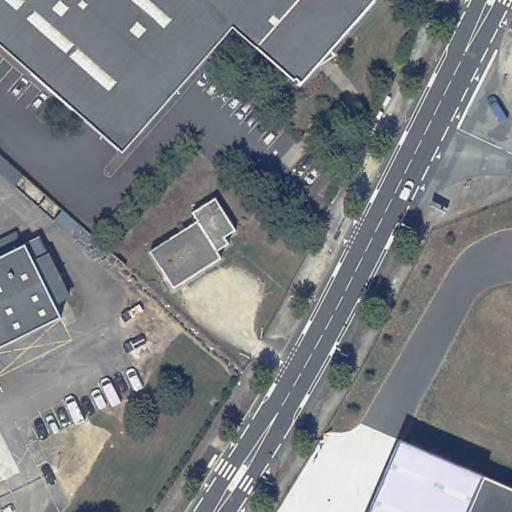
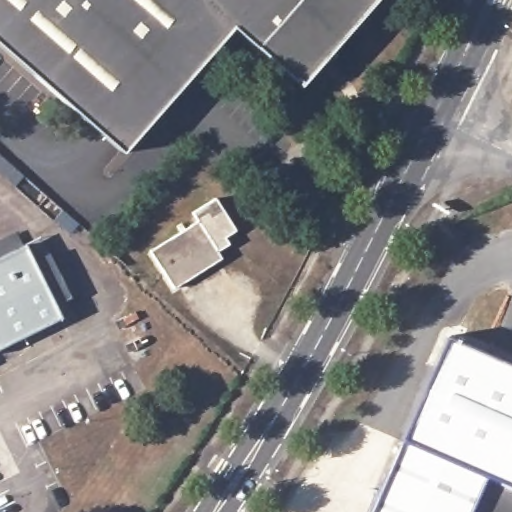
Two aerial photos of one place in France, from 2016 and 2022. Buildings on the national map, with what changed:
unchanged [(301,84),(303,81),(299,79),(298,81),(236,27),(126,153),(0,43),(0,0),(379,0),(304,86),(301,84)]
unchanged [(201,226),(196,218),(219,204),(239,236),(228,243),(231,250),(221,256),(224,263),(178,293),(154,257),(201,226)]
unchanged [(29,249),(64,323),(0,354),(0,264),(29,249)]
new [(512,489),(482,476),(400,440),(444,337),(512,367),(512,489)]
unchanged [(467,512),(370,512),(400,440),(482,476),(467,512)]
unchanged [(482,476),(512,489),(512,512),(467,512),(482,476)]

